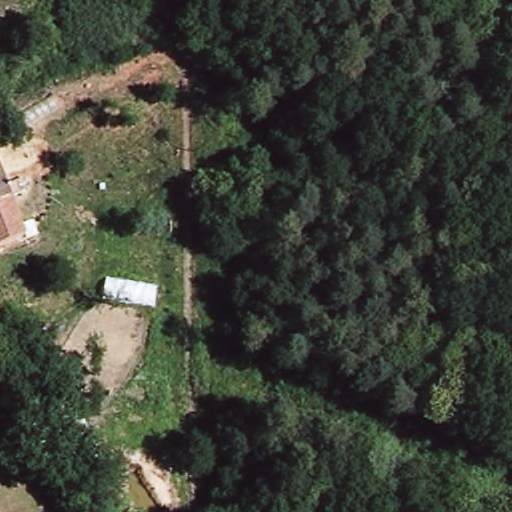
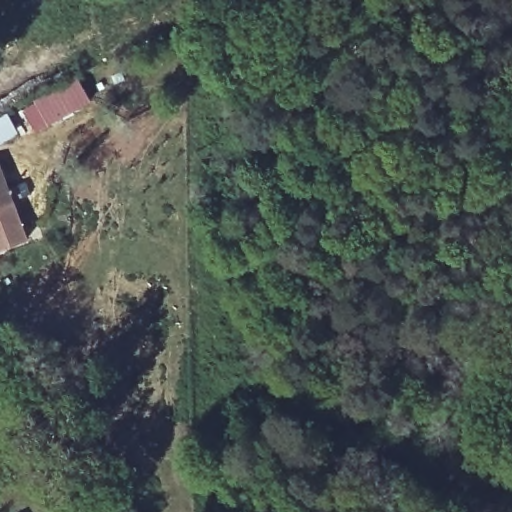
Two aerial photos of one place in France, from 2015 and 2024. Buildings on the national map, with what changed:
new [(34,131),(22,111),(35,104),(32,99),(76,75),(91,100),(34,131)]
unchanged [(15,175),(21,192),(11,195),(13,203),(0,208),(0,163),(2,162),(7,177),(15,175)]
unchanged [(0,250),(0,208),(13,203),(26,240),(0,250)]

